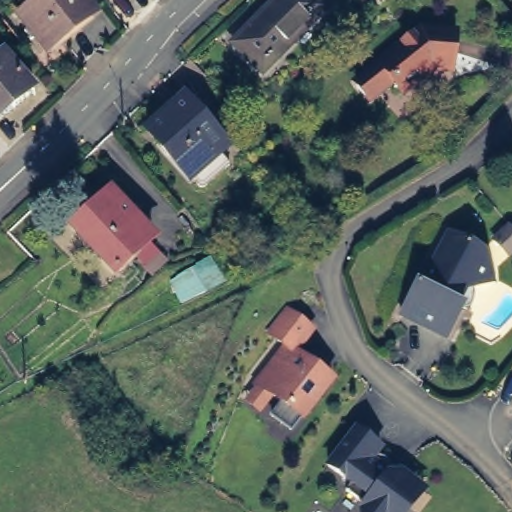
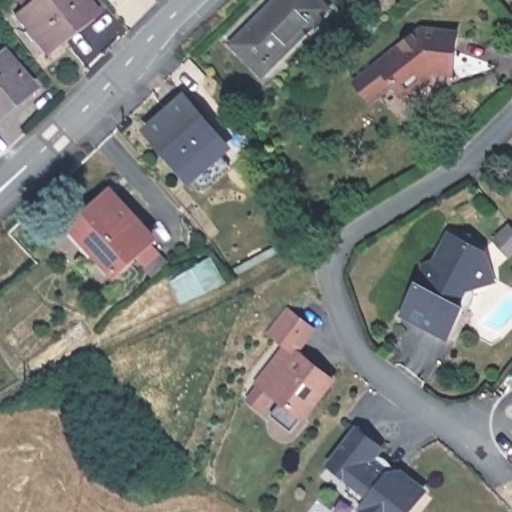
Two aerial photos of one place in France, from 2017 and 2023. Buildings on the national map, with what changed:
unchanged [(27,16),(47,0),(89,0),(100,14),(52,51),(27,16)]
unchanged [(331,8),(271,74),(240,47),(284,0),(322,0),(331,8)]
unchanged [(379,65),(422,29),(456,31),(453,72),(435,71),(405,96),(379,65)]
unchanged [(31,95),(30,96),(26,92),(0,113),(0,58),(31,95)]
unchanged [(192,173),(190,175),(150,126),(187,94),(228,143),(220,150),(229,161),(201,185),(192,173)]
unchanged [(142,267),(131,256),(112,273),(69,228),(107,193),(149,240),(145,244),(154,255),(142,267)]
unchanged [(499,239),(510,228),(512,230),(512,253),(499,239)]
unchanged [(494,282),(467,290),(459,305),(465,308),(449,339),(403,315),(419,284),(424,287),(451,235),(485,253),(494,282)]
unchanged [(260,379),(288,342),(273,329),(290,307),(313,326),(296,348),(334,377),(305,414),(275,390),(263,406),(250,396),(262,380),(260,379)]
unchanged [(363,512),(363,510),(367,505),(348,491),(354,484),(331,466),(359,430),(383,449),(377,457),(378,457),(379,457),(380,457),(381,457),(382,457),(383,457),(383,458),(384,458),(385,458),(385,459),(386,459),(387,459),(387,460),(388,460),(389,461),(390,461),(390,462),(391,462),(391,463),(392,463),(392,464),(392,465),(393,465),(393,466),(394,466),(394,467),(394,468),(395,468),(395,469),(395,470),(396,470),(396,471),(396,472),(396,473),(396,474),(403,473),(419,486),(426,492),(413,510),(411,512),(363,512)]

